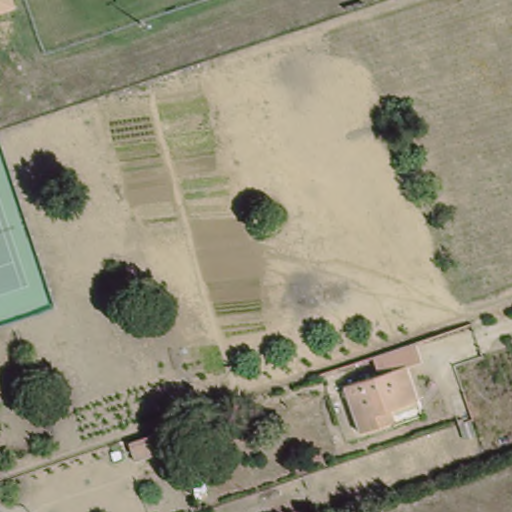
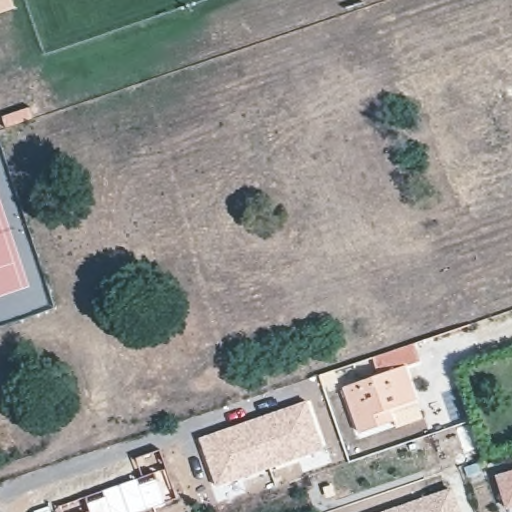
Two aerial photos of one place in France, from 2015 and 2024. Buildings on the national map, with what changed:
unchanged [(15,9),(0,14),(0,0),(11,0),(15,9)]
unchanged [(379,359),(418,345),(424,363),(409,368),(419,401),(392,410),(398,423),(364,434),(348,388),(385,376),(379,359)]
new [(244,420),(307,400),(324,450),(215,486),(197,438),(244,420)]
unchanged [(161,454),(134,463),(127,446),(155,438),(161,454)]
new [(495,475),(512,471),(512,509),(506,511),(495,475)]
new [(458,512),(392,512),(451,492),(458,512)]

